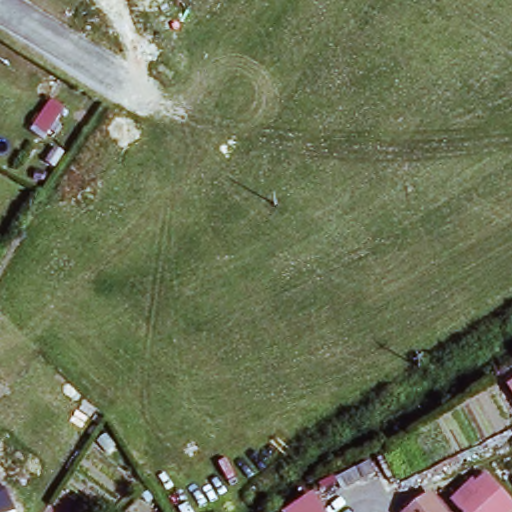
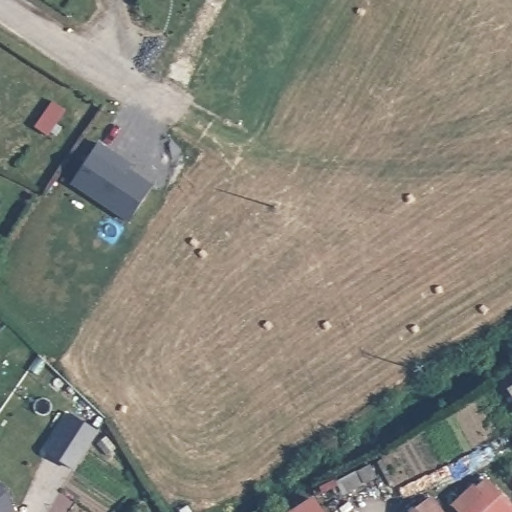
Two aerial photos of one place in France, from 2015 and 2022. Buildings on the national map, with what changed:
new [(133,164),(130,171),(153,185),(129,223),(70,184),(98,143),(133,164)]
unchanged [(512,404),(509,406),(500,380),(512,373),(512,404)]
new [(68,411),(96,428),(73,466),(45,450),(68,411)]
unchanged [(512,506),(512,512),(450,512),(444,503),(481,481),(512,506)]
unchanged [(8,492),(13,512),(0,512),(0,487),(8,492)]
unchanged [(313,496),(323,512),(288,512),(313,496)]
unchanged [(450,512),(433,512),(444,503),(450,512)]

